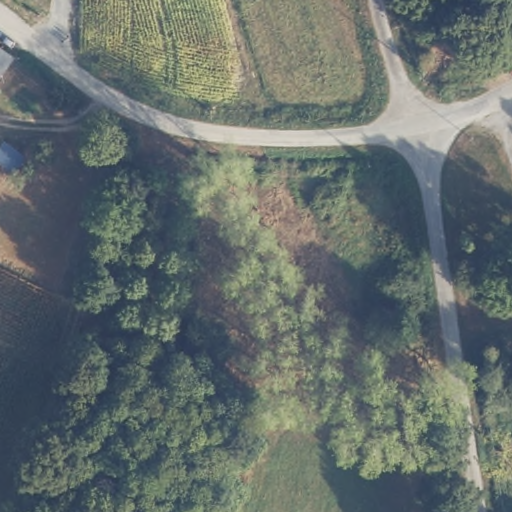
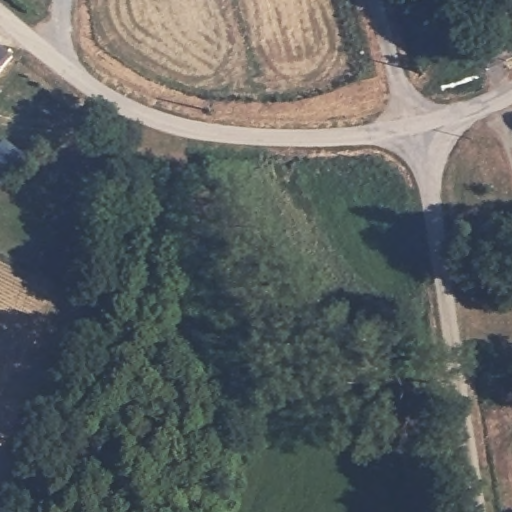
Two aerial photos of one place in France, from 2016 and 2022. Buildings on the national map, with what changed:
unchanged [(0,44),(12,54),(0,69),(0,44)]

